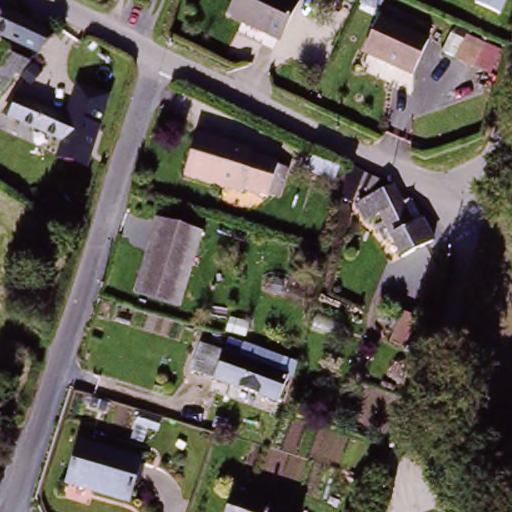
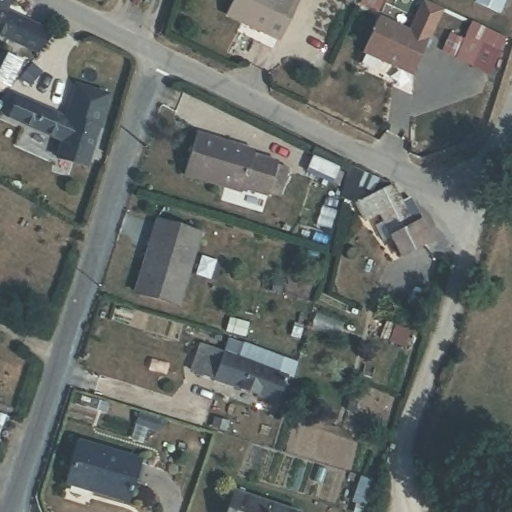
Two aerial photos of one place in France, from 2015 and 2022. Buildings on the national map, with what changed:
unchanged [(280,36),(224,14),(229,0),(293,0),(280,36)]
unchanged [(329,2),(325,0),(330,0),(329,2)]
unchanged [(363,7),(345,0),(366,0),(363,7)]
unchanged [(505,10),(480,0),(509,0),(505,10)]
unchanged [(429,40),(412,74),(365,50),(382,15),(429,40)]
unchanged [(0,30),(0,20),(3,21),(0,30)]
unchanged [(455,60),(465,40),(477,46),(477,47),(495,56),(486,76),(468,69),(468,67),(455,60)]
unchanged [(19,46),(33,60),(13,78),(0,65),(19,46)]
unchanged [(62,142),(3,119),(10,98),(71,119),(75,109),(90,114),(80,145),(63,138),(62,142)]
unchanged [(245,196),(244,201),(187,185),(197,140),(255,157),(253,164),(277,170),(270,202),(245,196)]
unchanged [(385,188),(376,194),(359,185),(351,202),(340,200),(348,170),(385,188)]
unchanged [(371,240),(381,235),(374,221),(363,226),(355,207),(390,191),(398,195),(400,207),(411,202),(437,258),(398,273),(390,255),(380,259),(371,240)]
unchanged [(159,226),(200,239),(179,307),(138,295),(159,226)]
unchanged [(190,365),(202,337),(238,353),(243,340),(279,353),(292,359),(288,374),(284,373),(272,402),(190,365)]
unchanged [(78,446),(138,465),(126,505),(66,487),(78,446)]
unchanged [(289,512),(230,512),(235,496),(289,512)]

